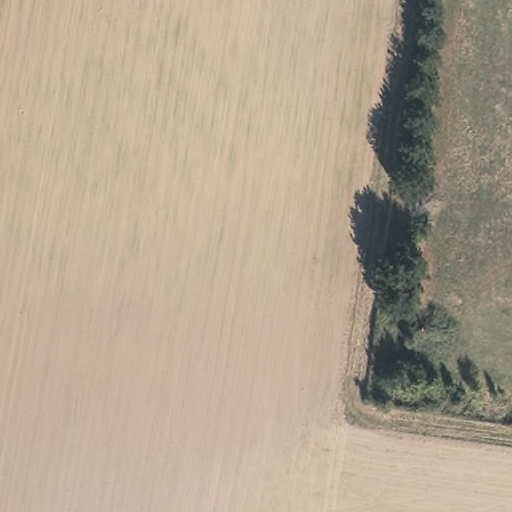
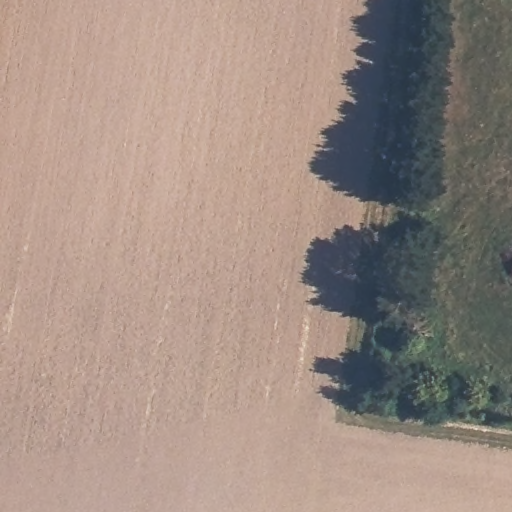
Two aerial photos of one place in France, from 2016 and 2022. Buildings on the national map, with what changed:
[]

